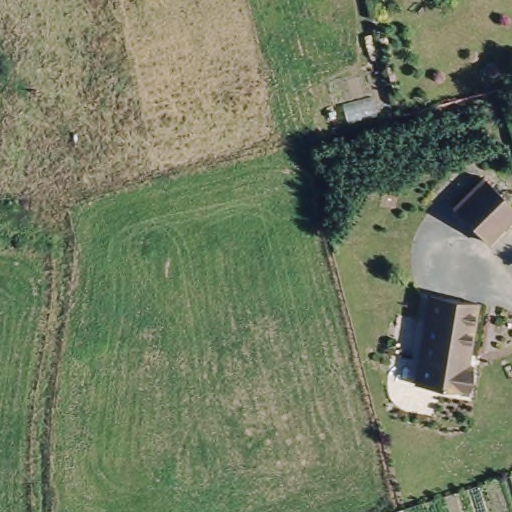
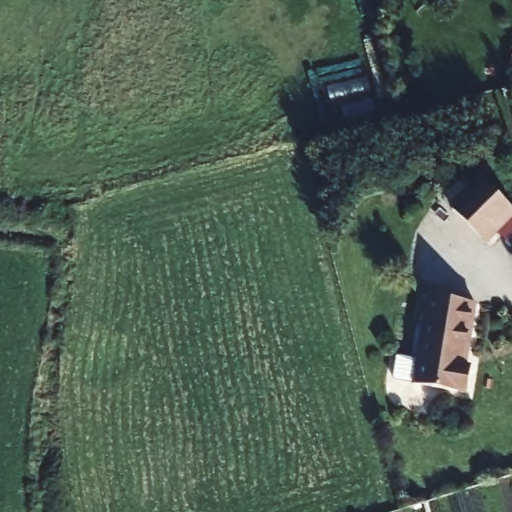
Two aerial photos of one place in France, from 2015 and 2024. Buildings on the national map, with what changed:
unchanged [(451,210),(481,179),(498,196),(512,210),(512,216),(485,244),(468,227),(451,210)]
unchanged [(428,297),(475,304),(465,367),(470,367),(466,394),(414,386),(428,297)]

